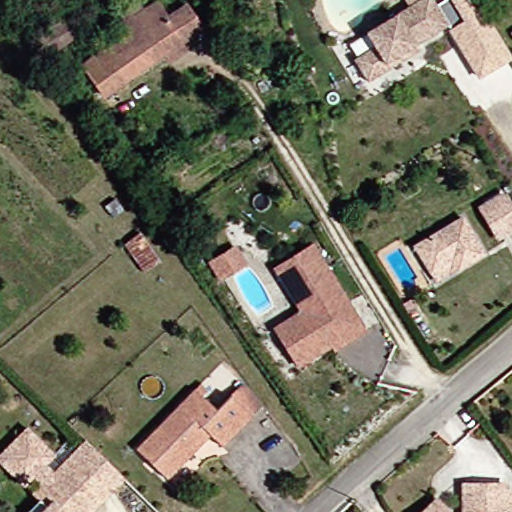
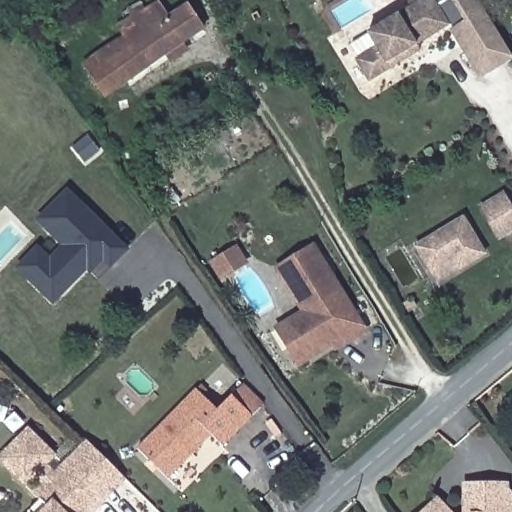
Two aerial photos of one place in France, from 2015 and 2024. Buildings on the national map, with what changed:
unchanged [(448,27),(428,39),(411,8),(405,0),(434,0),(436,4),(443,0),(478,0),(512,57),(512,58),(478,79),(448,27)]
unchanged [(186,6),(205,31),(111,97),(94,73),(133,44),(124,32),(134,24),(131,19),(146,7),(151,13),(161,5),(170,15),(186,6)]
unchanged [(367,79),(345,91),(333,69),(354,57),(346,43),(411,8),(428,39),(394,57),(397,62),(367,79)]
unchanged [(64,64),(50,50),(74,30),(87,44),(64,64)]
new [(89,266),(56,300),(33,277),(20,265),(40,245),(52,257),(66,244),(40,217),(70,189),(129,248),(113,264),(106,257),(93,270),(89,266)]
unchanged [(479,215),(504,197),(512,207),(512,232),(499,241),(479,215)]
unchanged [(459,271),(451,260),(431,274),(414,253),(459,220),(483,253),(459,271)]
unchanged [(283,322),(302,311),(285,283),(276,267),(292,258),(314,245),(365,331),(348,341),(334,349),(332,345),(306,360),(297,365),(275,327),(283,322)]
new [(237,246),(248,264),(221,281),(210,263),(237,246)]
unchanged [(219,449),(207,438),(166,482),(134,454),(176,409),(192,393),(213,412),(237,386),(259,406),(219,449)]
unchanged [(32,477),(23,486),(0,463),(0,455),(26,429),(54,456),(45,466),(53,474),(41,486),(32,477)]
unchanged [(31,495),(41,486),(53,474),(85,442),(108,465),(123,481),(92,512),(28,512),(38,501),(31,495)]
unchanged [(471,490),(499,492),(498,500),(502,500),(511,512),(456,512),(458,489),(471,490)]
unchanged [(437,512),(419,512),(429,503),(437,512)]

